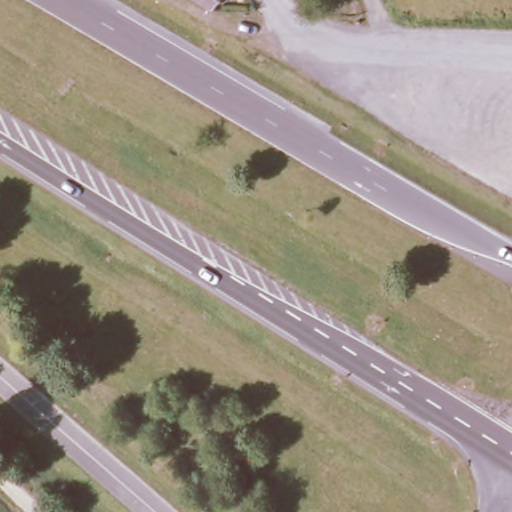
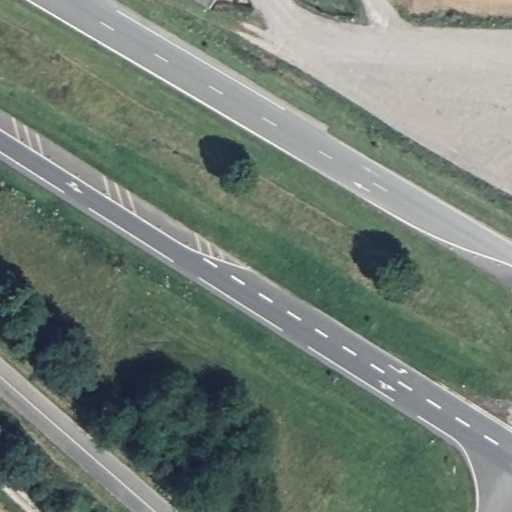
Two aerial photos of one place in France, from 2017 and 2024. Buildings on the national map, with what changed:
unchanged [(214,0),(222,0),(220,4),(214,0)]

